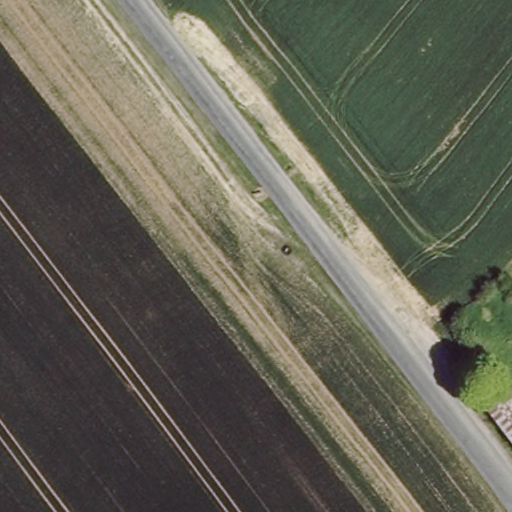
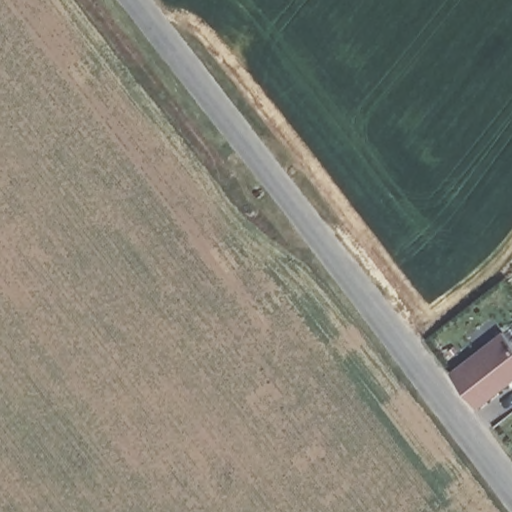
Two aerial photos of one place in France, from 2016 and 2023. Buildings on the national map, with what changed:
new [(449,371),(502,331),(512,343),(512,379),(477,406),(449,371)]
demolished [(462,388),(476,378),(492,398),(512,424),(512,455),(478,410),(462,388)]

